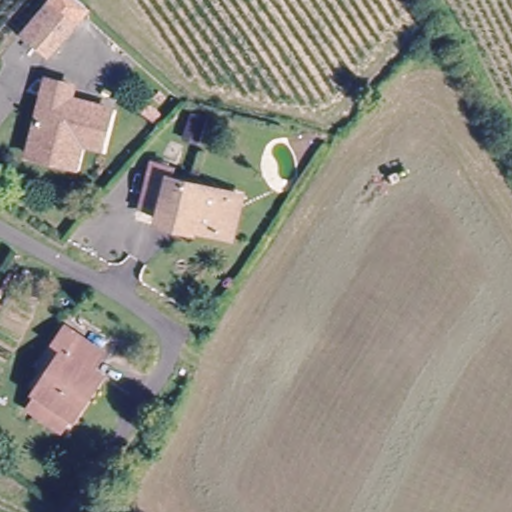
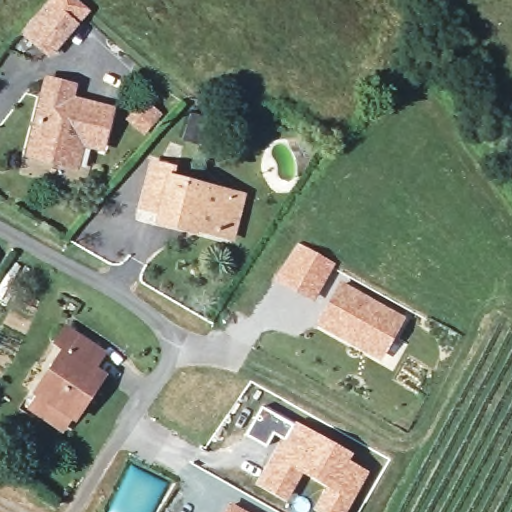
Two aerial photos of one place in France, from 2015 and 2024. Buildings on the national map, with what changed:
unchanged [(86,7),(74,22),(48,52),(22,30),(48,0),(78,0),(86,7)]
unchanged [(50,157),(23,150),(42,75),(60,79),(68,81),(65,95),(106,105),(96,143),(76,138),(70,162),(50,157)]
unchanged [(227,237),(214,234),(154,218),(155,212),(137,207),(148,164),(167,168),(165,179),(225,194),(238,197),(227,237)]
new [(298,243),(335,264),(315,303),(273,279),(298,243)]
new [(341,281),(407,318),(381,362),(316,325),(341,281)]
unchanged [(30,403),(39,390),(36,388),(64,346),(55,340),(66,323),(102,348),(92,363),(101,369),(73,412),(70,411),(62,424),(30,403)]
new [(303,474),(287,502),(257,484),(282,437),(274,433),(267,443),(248,433),(263,405),(295,424),(295,420),(354,454),(351,460),(370,472),(347,512),(317,512),(314,510),(325,486),(303,474)]
new [(251,512),(224,512),(230,500),(251,512)]

